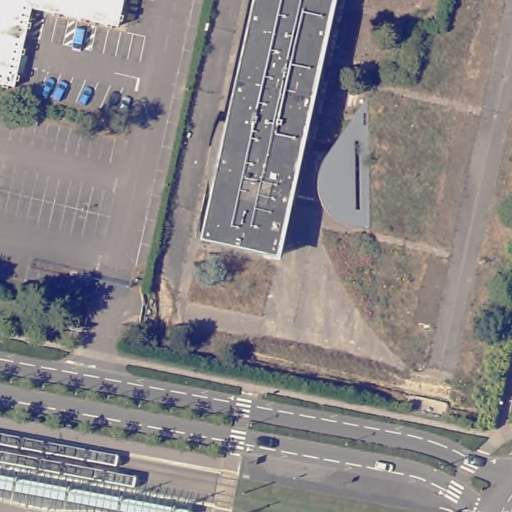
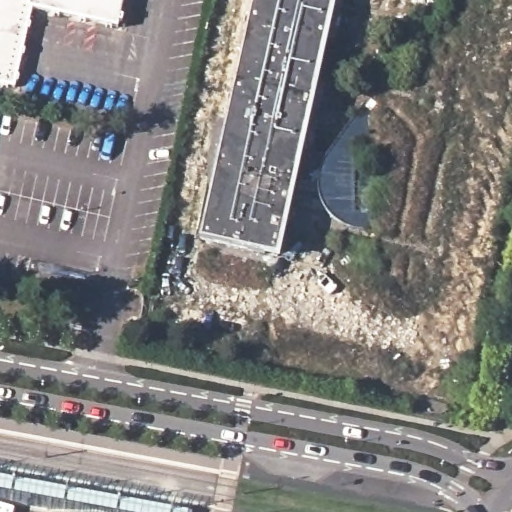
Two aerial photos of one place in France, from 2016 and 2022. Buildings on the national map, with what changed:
unchanged [(123,29),(36,10),(19,88),(0,84),(0,0),(130,0),(123,29)]
unchanged [(309,130),(310,130),(294,205),(292,204),(281,258),(203,240),(258,0),(338,0),(309,130)]
unchanged [(367,229),(341,225),(325,213),(319,203),(315,186),(317,172),(325,155),(365,96),(367,229)]

